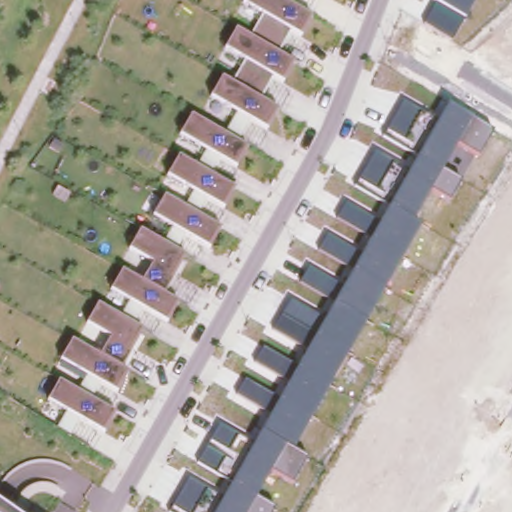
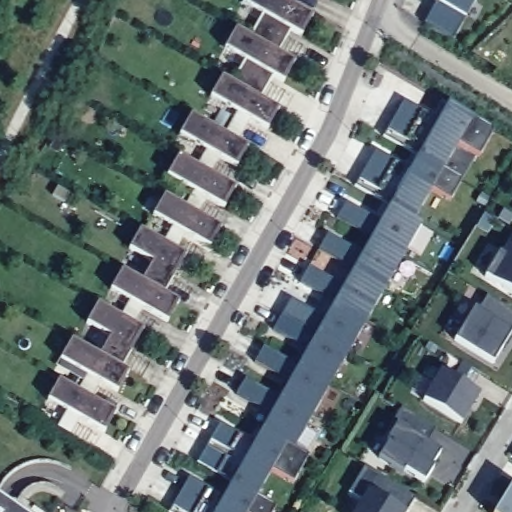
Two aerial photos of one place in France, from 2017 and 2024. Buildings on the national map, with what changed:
unchanged [(311,17),(300,36),(288,29),(276,52),(294,63),(282,82),(271,76),(258,98),(277,109),(266,128),(248,118),(234,140),(245,146),(234,165),(218,156),(209,174),(233,189),(223,207),(205,198),(197,214),(219,228),(209,248),(184,234),(175,250),(184,256),(162,293),(178,302),(167,322),(142,308),(133,324),(142,330),(120,367),(127,373),(117,391),(100,382),(90,398),(114,413),(103,431),(47,399),(58,379),(78,391),(89,375),(61,358),(72,339),(100,354),(110,335),(85,322),(97,303),(120,318),(130,300),(109,288),(121,268),(142,280),(152,263),(129,248),(140,229),(162,243),(172,226),(152,214),(164,195),(184,207),(194,190),(167,174),(177,155),(197,166),(206,149),(180,134),(190,114),(224,133),(237,110),(210,95),(221,76),(230,83),(245,58),(225,46),(235,29),(249,36),(264,13),(242,1),(243,0),(287,0),(286,2),(311,17)]
unchanged [(475,0),(466,18),(453,39),(425,24),(434,0),(475,0)]
unchanged [(170,512),(191,476),(224,496),(224,497),(230,485),(197,463),(220,423),(254,443),(270,415),(237,394),(246,378),(280,398),(288,382),(255,362),(263,346),(298,366),(305,351),(274,330),(291,301),(324,320),(334,303),(300,283),(310,266),(344,285),(352,269),(320,250),(328,234),(362,252),(370,237),(337,218),(347,201),(380,221),(387,207),(356,186),(376,149),(410,168),(418,155),(385,135),(404,101),(437,120),(449,102),(494,129),(480,155),(457,142),(442,169),(461,179),(450,200),(432,188),(415,220),(422,225),(295,450),(307,457),(293,483),(271,470),(256,497),(275,507),(272,512),(171,512),(170,512)]
new [(512,289),(479,270),(509,219),(512,221),(512,289)]
new [(512,330),(497,357),(445,328),(474,276),(512,298),(512,330)]
new [(489,369),(460,420),(407,390),(437,339),(489,369)]
new [(452,430),(423,481),(371,452),(400,400),(452,430)]
new [(417,489),(404,512),(339,512),(336,511),(365,459),(417,489)]
new [(512,512),(490,512),(486,510),(506,477),(512,481),(512,512)]
unchanged [(6,512),(0,512),(0,508),(6,512)]
unchanged [(10,508),(15,512),(7,512),(10,508)]

